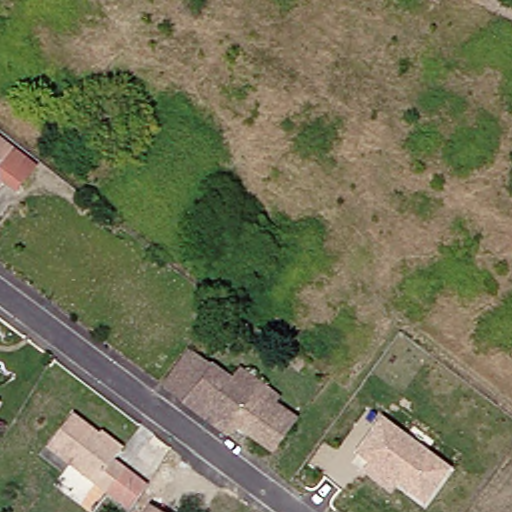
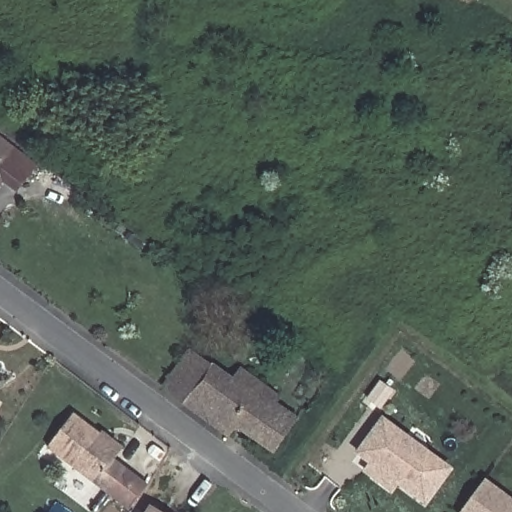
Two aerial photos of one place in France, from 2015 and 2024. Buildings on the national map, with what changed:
unchanged [(31,160),(9,191),(0,185),(0,135),(31,160)]
unchanged [(154,391),(183,352),(224,381),(230,373),(253,390),(256,386),(272,398),(264,409),(285,423),(263,454),(223,426),(215,436),(171,403),(154,391)]
unchanged [(62,414),(109,450),(104,457),(137,482),(133,488),(117,509),(37,447),(62,414)]
unchanged [(366,474),(372,466),(357,456),(381,421),(449,468),(425,503),(397,483),(391,491),(366,474)]
new [(481,475),(512,498),(512,512),(459,512),(481,475)]
unchanged [(141,510),(144,512),(140,512),(141,510)]

